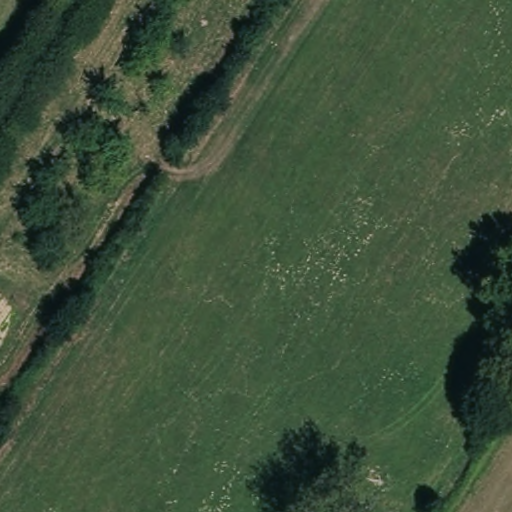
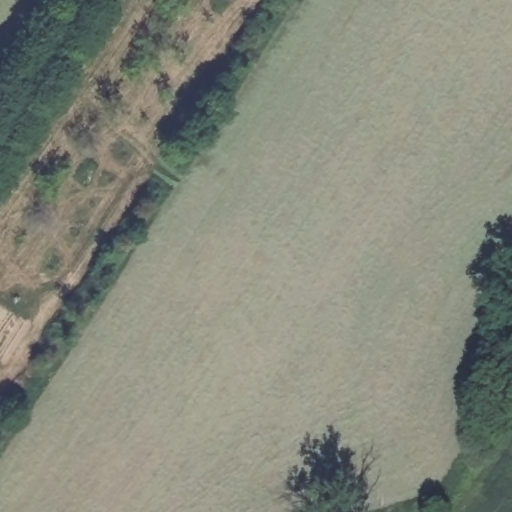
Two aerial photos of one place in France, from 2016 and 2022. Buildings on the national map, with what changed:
[]

